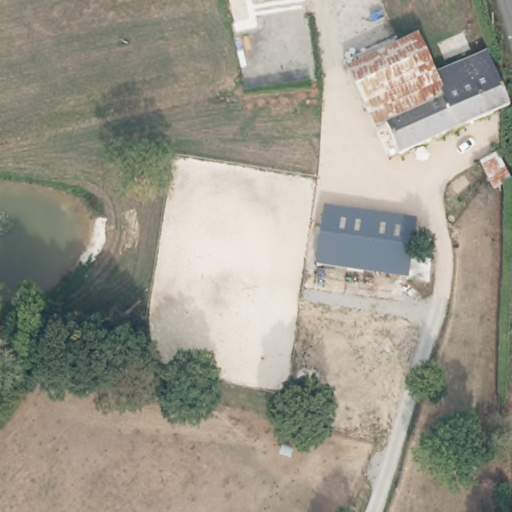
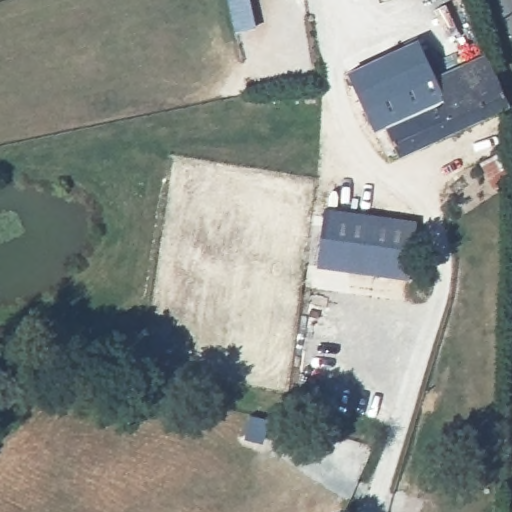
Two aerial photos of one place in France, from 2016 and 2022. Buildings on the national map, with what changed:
unchanged [(376,134),(352,71),(418,43),(431,70),(434,80),(488,57),(506,93),(508,111),(394,159),(376,134)]
unchanged [(499,194),(486,162),(503,154),(512,172),(512,189),(499,194)]
unchanged [(409,282),(317,268),(323,211),(390,221),(418,225),(412,266),(409,282)]

